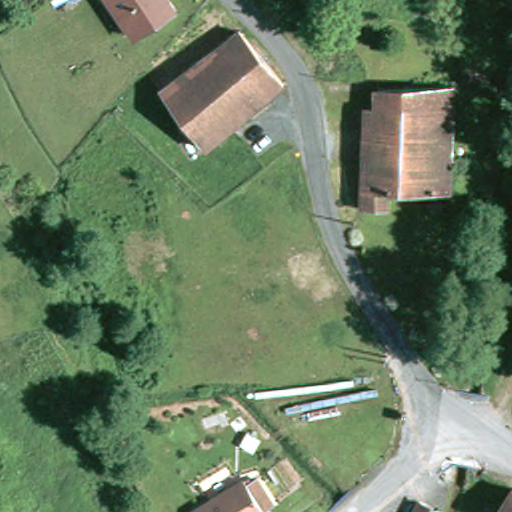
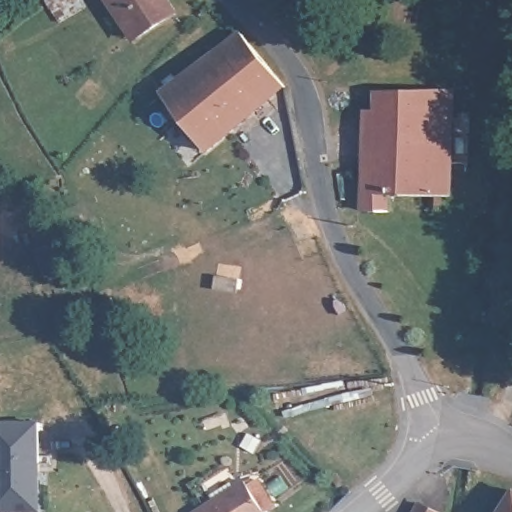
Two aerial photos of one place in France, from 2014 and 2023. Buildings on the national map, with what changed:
unchanged [(128,22),(115,0),(162,0),(176,23),(135,48),(122,25),(128,22)]
unchanged [(214,153),(199,133),(192,137),(186,130),(193,124),(155,72),(153,69),(209,26),(220,42),(239,28),(289,91),(284,96),(214,153)]
unchanged [(457,105),(381,103),(384,81),(459,84),(457,105)]
unchanged [(447,196),(441,196),(440,205),(430,205),(431,196),(388,195),(386,216),(360,216),(372,103),(381,103),(457,105),(447,196)]
unchanged [(244,416),(258,425),(251,438),(237,429),(244,416)]
new [(41,511),(0,510),(0,420),(41,419),(41,511)]
unchanged [(244,488),(254,482),(269,510),(264,512),(186,512),(240,481),(244,488)]
unchanged [(504,512),(512,502),(512,512),(504,512)]
unchanged [(433,512),(417,512),(423,505),(433,512)]

